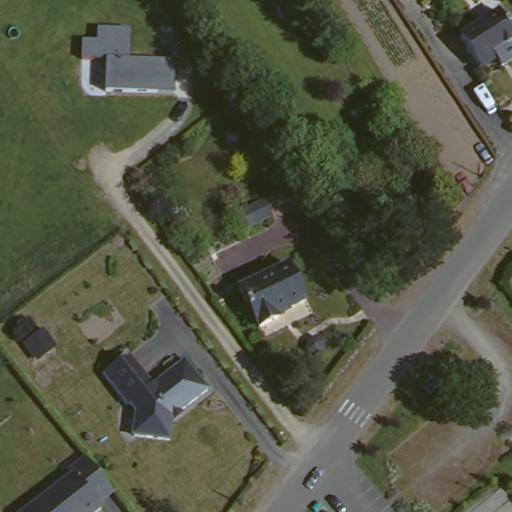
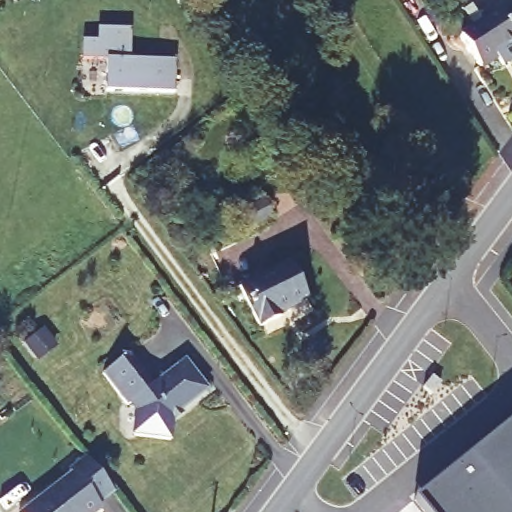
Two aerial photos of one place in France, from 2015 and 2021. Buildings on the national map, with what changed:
unchanged [(503,49),(506,52),(481,68),(460,38),(499,13),(512,32),(512,43),(503,49)]
unchanged [(134,59),(176,60),(175,92),(103,89),(105,60),(82,59),(82,37),(99,37),(99,26),(134,27),(134,59)]
unchanged [(250,236),(244,220),(267,209),(275,225),(250,236)]
unchanged [(304,303),(276,317),(278,321),(257,332),(237,291),(286,266),(304,303)]
unchanged [(128,356),(152,387),(184,363),(207,393),(177,415),(175,413),(171,416),(167,443),(132,437),(136,413),(130,405),(125,407),(102,376),(128,356)]
unchanged [(437,405),(431,400),(438,391),(445,397),(437,405)]
new [(415,501),(512,422),(512,512),(423,512),(415,501)]
unchanged [(95,512),(31,512),(67,485),(62,480),(79,467),(107,503),(95,512)]

